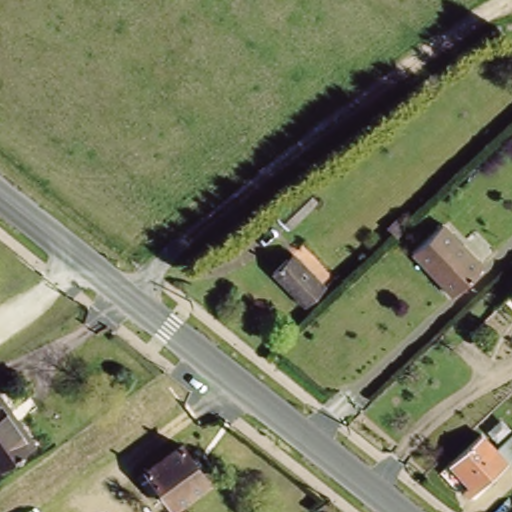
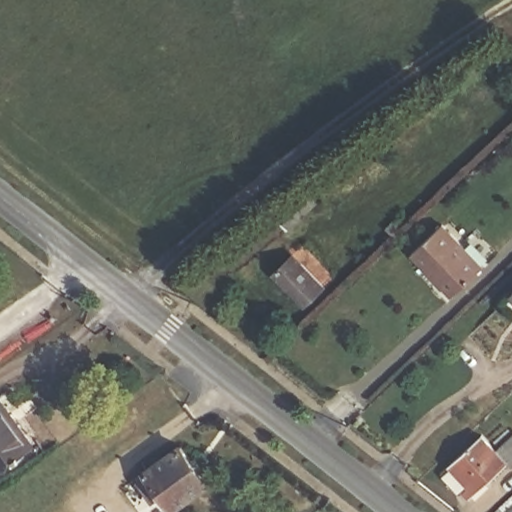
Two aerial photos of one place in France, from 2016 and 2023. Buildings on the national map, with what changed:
unchanged [(278,216),(306,191),(316,204),(286,227),(278,216)]
unchanged [(396,239),(386,229),(393,222),(402,232),(396,239)]
unchanged [(407,256),(436,225),(475,262),(446,293),(407,256)]
unchanged [(296,254),(324,286),(304,303),(277,271),(296,254)]
unchanged [(512,288),(512,292),(510,290),(512,288)]
unchanged [(23,441),(21,457),(0,471),(0,407),(23,441)]
unchanged [(497,450),(512,435),(512,466),(508,462),(479,490),(453,463),(483,435),(497,450)]
unchanged [(149,469),(182,447),(207,484),(174,507),(149,469)]

